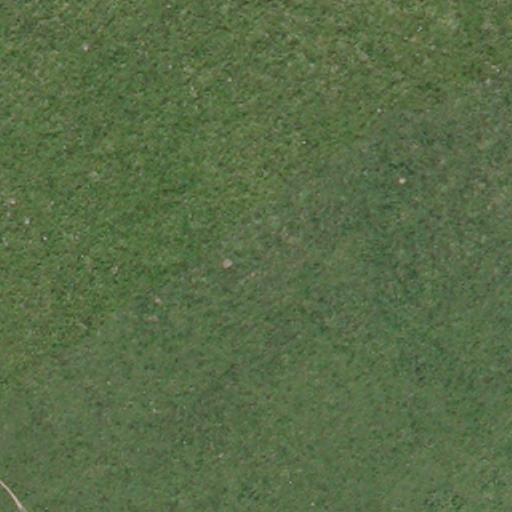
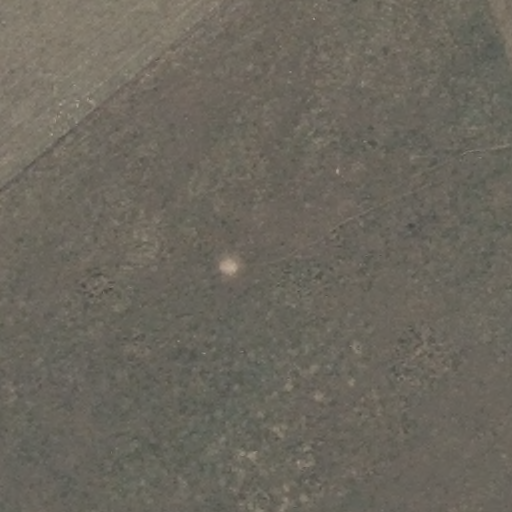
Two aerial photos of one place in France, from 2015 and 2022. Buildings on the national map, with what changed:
[]

